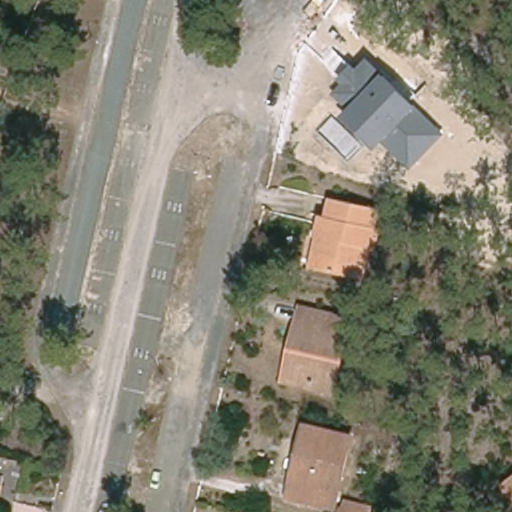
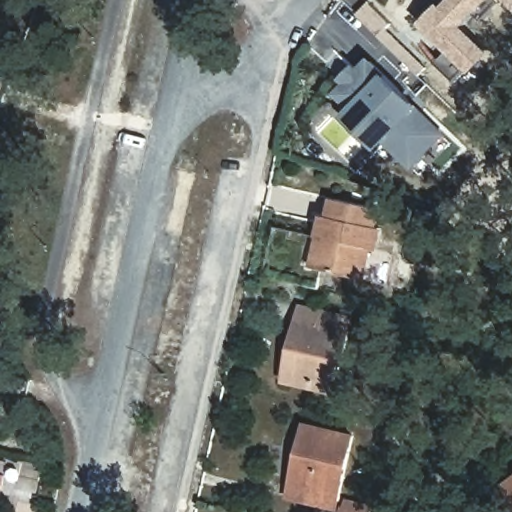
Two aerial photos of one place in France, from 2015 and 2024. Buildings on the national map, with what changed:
new [(481,22),(475,16),(464,27),(491,54),(470,74),(467,70),(455,82),(435,65),(448,52),(420,24),(441,3),(443,5),(448,0),(496,0),(500,4),(481,22)]
new [(504,0),(512,0),(512,9),(504,0)]
unchanged [(410,170),(382,143),(375,151),(340,116),(348,109),(331,95),(341,85),(337,80),(352,64),(355,68),(366,58),(381,73),(415,106),(445,135),(410,170)]
unchanged [(19,80),(0,75),(0,61),(24,69),(19,80)]
unchanged [(323,235),(327,215),(331,199),(341,201),(384,210),(381,227),(387,228),(382,250),(375,248),(369,278),(328,269),(317,266),(323,235)]
unchanged [(433,226),(420,224),(421,206),(436,208),(433,226)]
unchanged [(335,395),(286,382),(304,307),(353,318),(335,395)]
unchanged [(358,484),(340,480),(333,511),(285,500),(303,425),(351,436),(345,460),(362,465),(358,484)]
unchanged [(0,485),(0,475),(2,475),(0,485)]
unchanged [(502,481),(512,475),(512,496),(502,481)]
unchanged [(343,510),(345,502),(374,507),(373,512),(343,512),(343,510)]
unchanged [(30,506),(57,512),(30,512),(30,506)]

